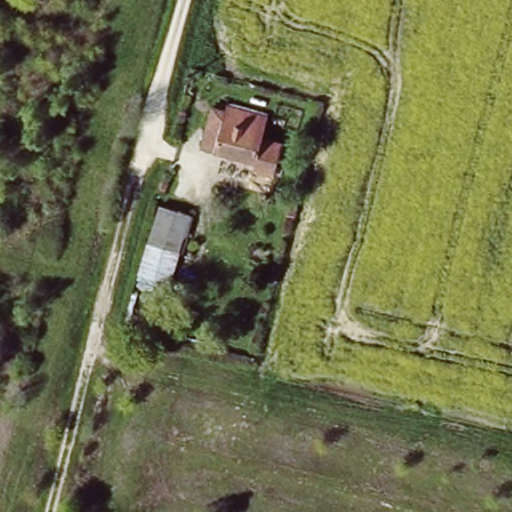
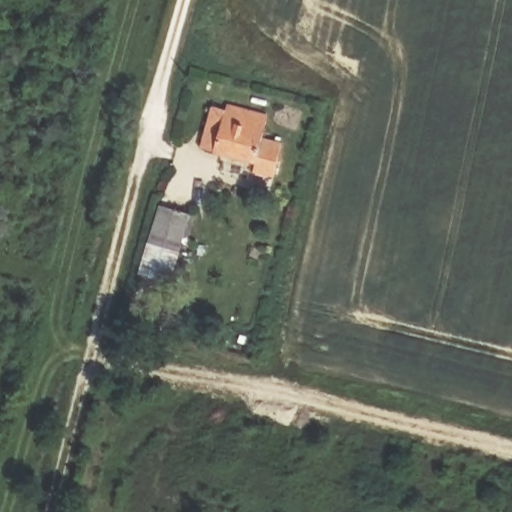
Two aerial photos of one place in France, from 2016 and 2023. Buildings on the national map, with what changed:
unchanged [(261,170),(241,163),(244,153),(203,140),(219,95),(259,109),(251,135),(271,142),(261,170)]
unchanged [(180,253),(144,246),(153,207),(193,216),(180,253)]

